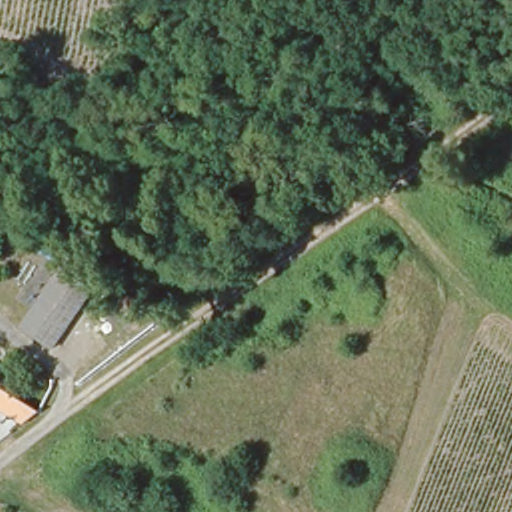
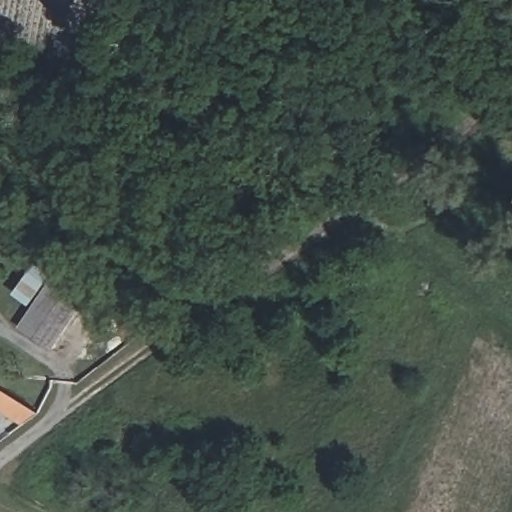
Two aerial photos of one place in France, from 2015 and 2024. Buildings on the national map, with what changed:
unchanged [(59,268),(91,287),(60,336),(50,352),(19,331),(20,329),(59,268)]
unchanged [(23,423),(0,409),(0,378),(2,375),(44,402),(39,413),(23,423)]

